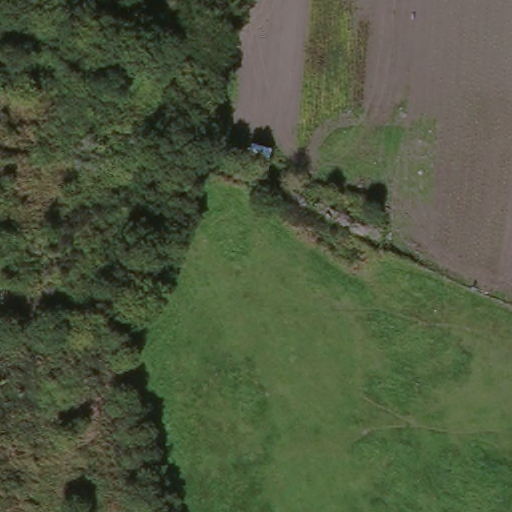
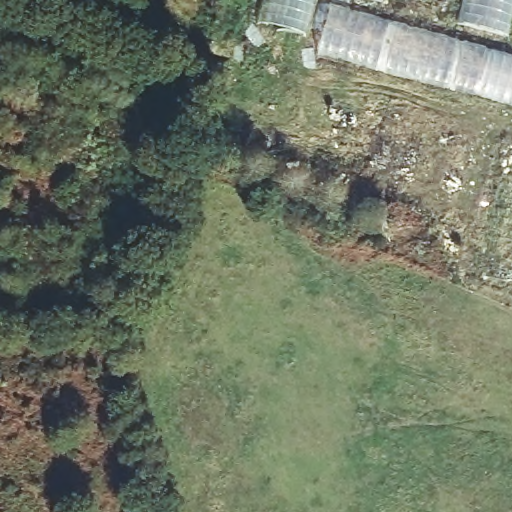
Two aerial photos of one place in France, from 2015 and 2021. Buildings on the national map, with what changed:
new [(261,24),(267,0),(307,0),(298,34),(261,24)]
new [(398,8),(400,0),(445,0),(441,20),(398,8)]
new [(318,45),(328,7),(512,60),(512,105),(318,45)]

